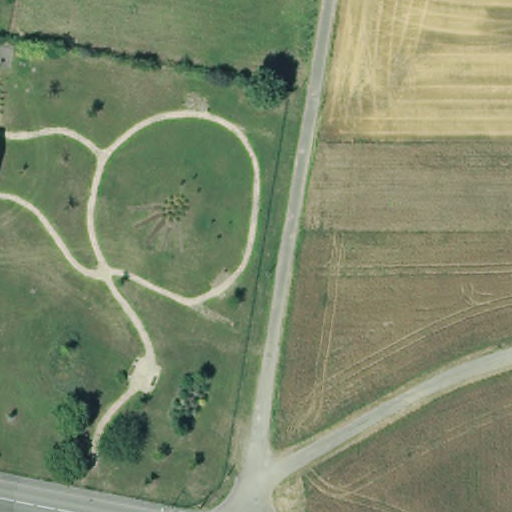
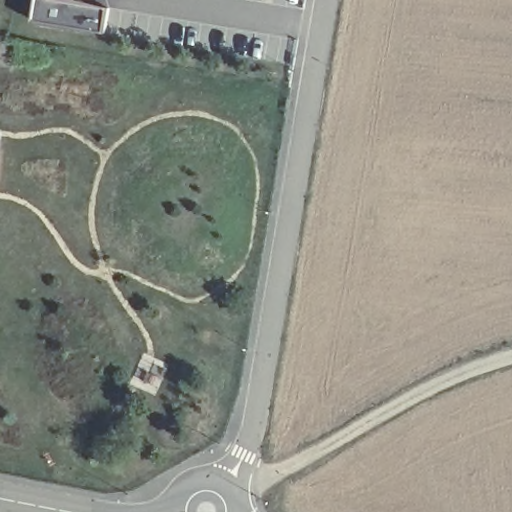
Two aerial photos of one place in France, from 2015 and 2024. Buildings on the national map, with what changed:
new [(110,9),(106,33),(35,21),(39,0),(83,0),(82,4),(110,9)]

